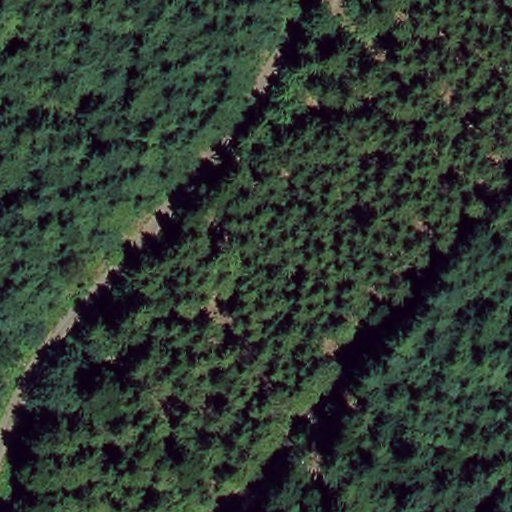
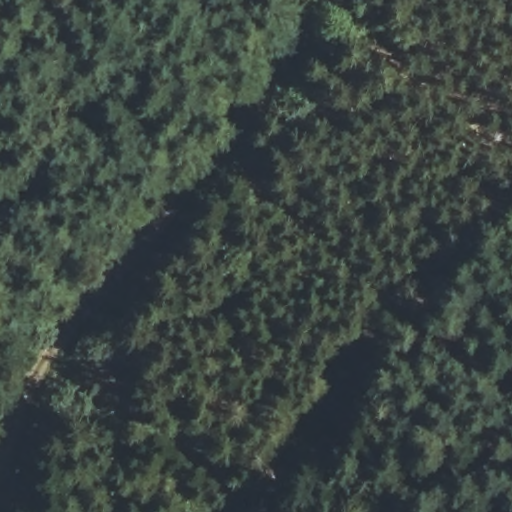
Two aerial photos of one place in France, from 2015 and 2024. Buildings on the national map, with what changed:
[]

